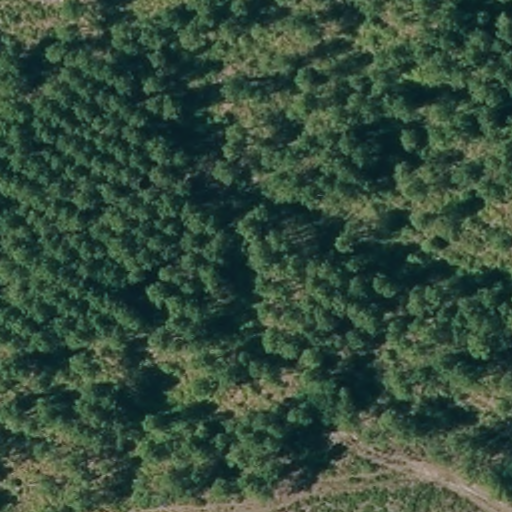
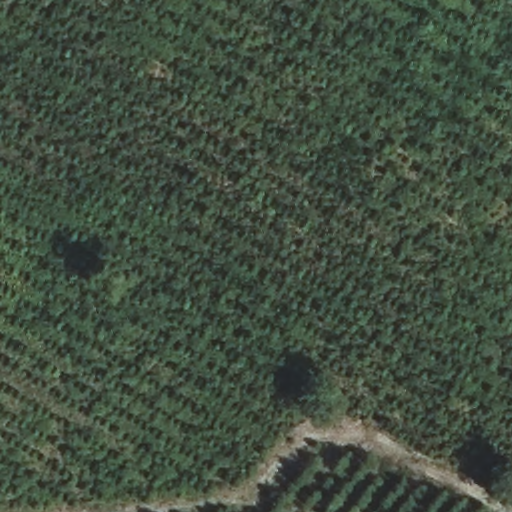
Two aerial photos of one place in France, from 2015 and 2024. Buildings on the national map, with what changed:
[]

